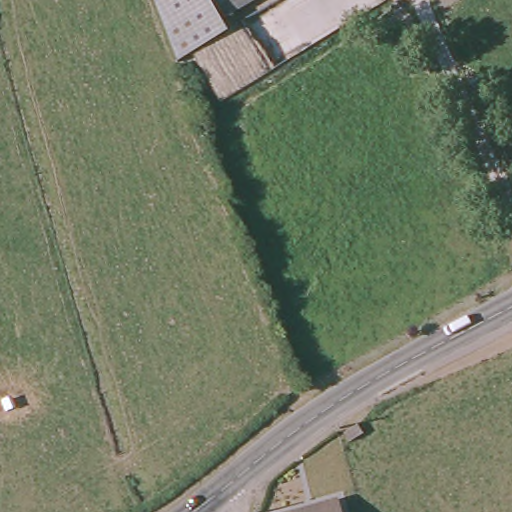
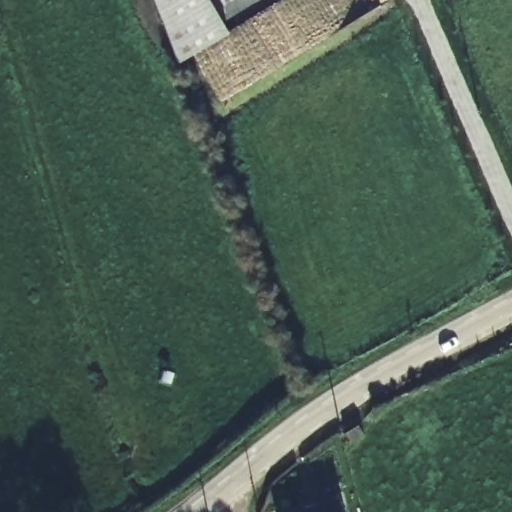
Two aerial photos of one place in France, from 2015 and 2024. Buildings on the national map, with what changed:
unchanged [(220,24),(227,35),(181,60),(162,10),(158,0),(208,0),(220,24)]
unchanged [(220,24),(208,0),(264,0),(220,24)]
unchanged [(309,512),(335,505),(337,512),(309,512)]

